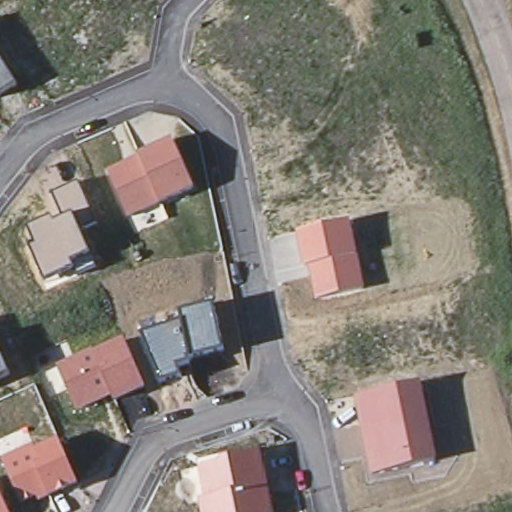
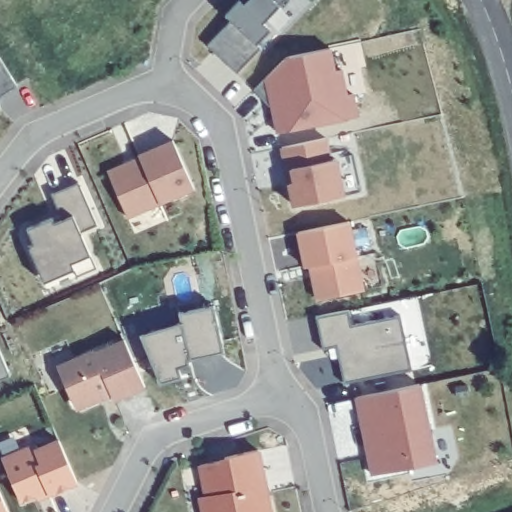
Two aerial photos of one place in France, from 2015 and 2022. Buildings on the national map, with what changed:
new [(280,5),(262,22),(270,30),(257,42),(260,48),(236,72),(209,44),(232,19),(228,14),(241,0),(245,4),(249,0),(284,0),(280,5)]
new [(352,41),(362,90),(350,92),(343,92),(338,67),(332,68),(327,46),(352,41)]
new [(284,55),(327,46),(332,68),(338,67),(343,92),(350,92),(354,114),(274,129),(270,96),(265,100),(252,87),(284,55)]
unchanged [(17,83),(0,94),(0,56),(17,83)]
unchanged [(196,188),(129,220),(107,171),(173,139),(196,188)]
new [(280,148),(327,140),(334,158),(338,157),(355,154),(362,193),(346,196),(294,206),(289,183),(280,148)]
unchanged [(80,181),(99,226),(82,231),(96,267),(77,276),(74,268),(43,281),(29,247),(35,244),(29,227),(53,217),(57,222),(62,220),(51,192),(80,181)]
unchanged [(350,220),(365,287),(315,301),(309,267),(305,267),(297,232),(350,220)]
unchanged [(225,351),(191,358),(191,362),(177,367),(181,376),(162,384),(142,335),(182,322),(180,312),(213,305),(225,351)]
new [(339,344),(324,347),(317,317),(349,311),(352,327),(400,317),(410,368),(345,382),(339,344)]
unchanged [(147,389),(115,403),(112,397),(77,413),(57,365),(124,337),(147,389)]
unchanged [(10,375),(0,379),(0,352),(10,375)]
unchanged [(424,382),(439,460),(370,475),(355,399),(424,382)]
unchanged [(79,485),(37,502),(35,497),(22,504),(2,458),(57,435),(79,485)]
unchanged [(275,512),(200,512),(197,497),(203,496),(199,467),(262,448),(275,512)]
unchanged [(8,512),(0,512),(0,491),(8,512)]

